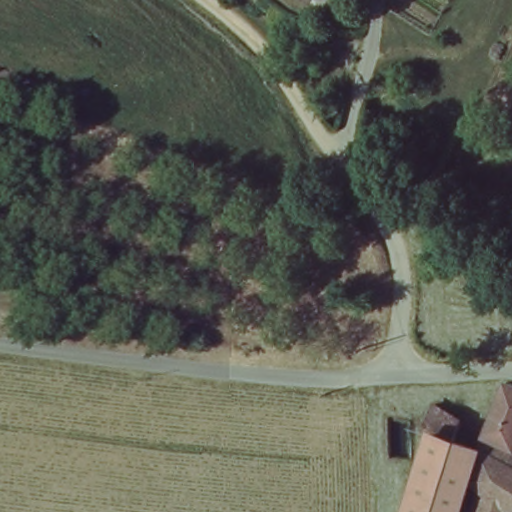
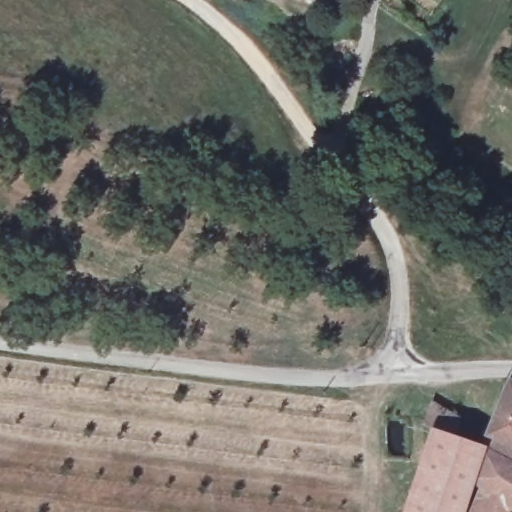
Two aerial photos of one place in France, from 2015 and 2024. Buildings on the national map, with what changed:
unchanged [(507,377),(512,379),(512,438),(485,424),(493,407),(507,377)]
unchanged [(450,512),(403,512),(432,426),(418,419),(427,399),(456,411),(485,424),(477,446),(466,473),(442,465),(428,505),(450,512)]
unchanged [(512,448),(512,470),(501,464),(487,486),(466,473),(477,446),(485,424),(512,438),(512,446),(511,448),(512,448)]
unchanged [(512,470),(512,506),(509,504),(505,512),(479,512),(487,486),(501,464),(512,470)]

